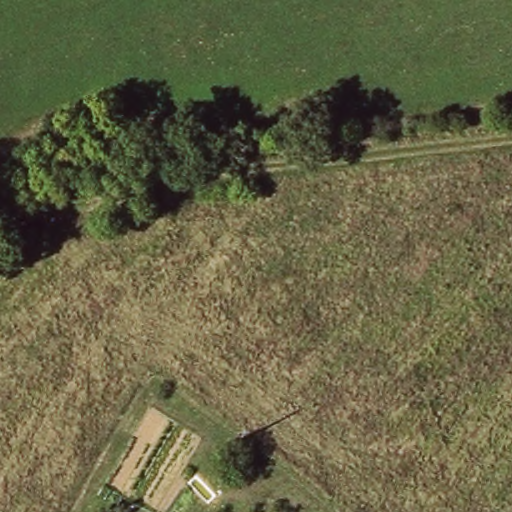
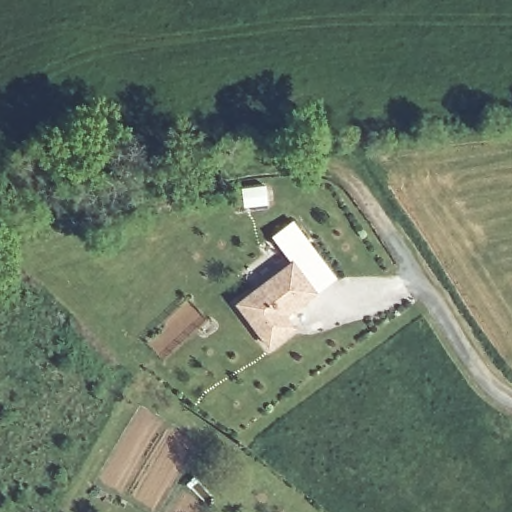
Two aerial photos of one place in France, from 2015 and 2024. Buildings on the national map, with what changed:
new [(318,291),(295,261),(290,255),(275,235),(294,220),(310,240),(337,276),(318,291)]
new [(295,261),(318,291),(287,315),(296,326),(270,346),(239,304),(295,261)]

